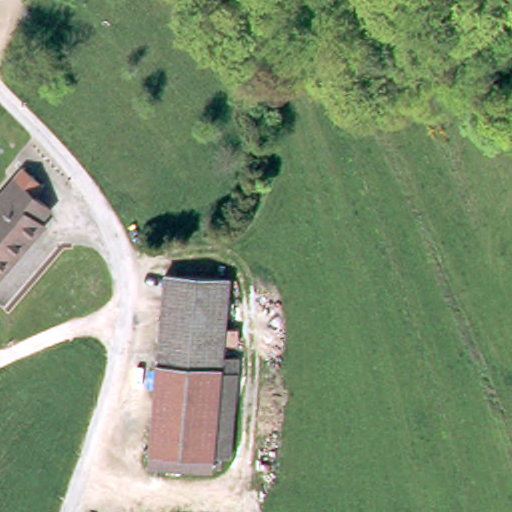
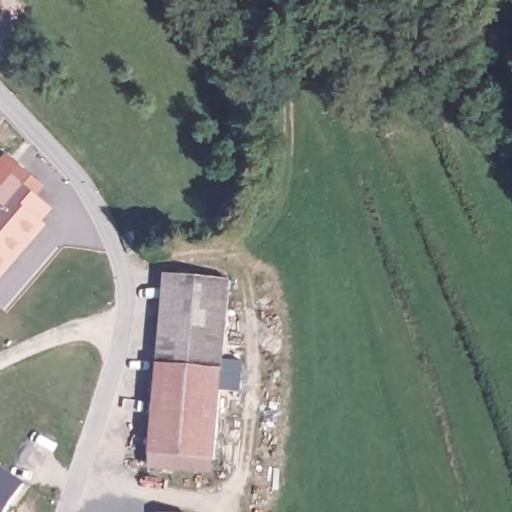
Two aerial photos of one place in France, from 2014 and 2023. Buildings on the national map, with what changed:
unchanged [(45,204),(34,217),(41,222),(0,273),(0,188),(9,176),(45,204)]
unchanged [(211,453),(144,449),(151,406),(154,358),(159,358),(162,337),(167,269),(176,270),(224,274),(211,453)]
new [(0,459),(25,475),(6,504),(2,510),(0,509),(0,459)]
new [(169,512),(157,512),(157,511),(169,512)]

